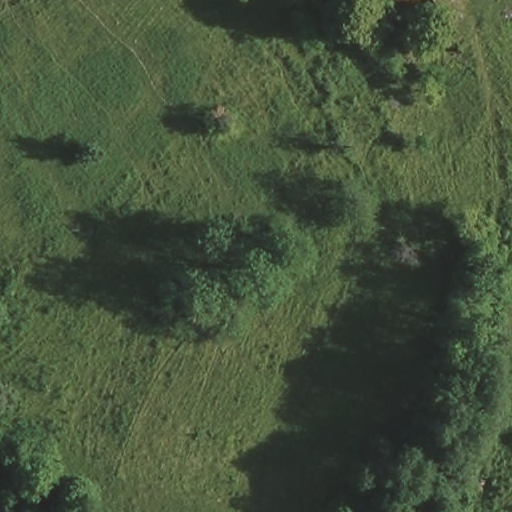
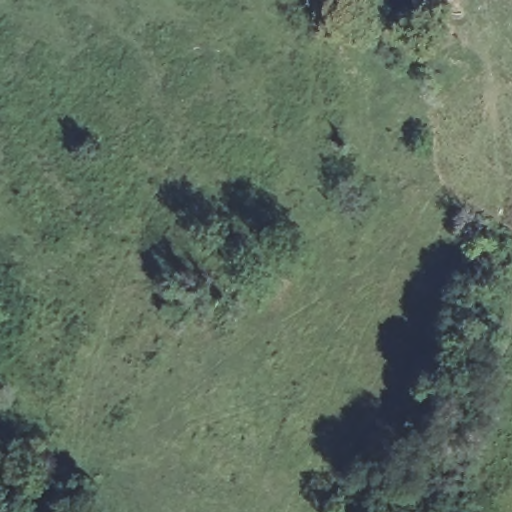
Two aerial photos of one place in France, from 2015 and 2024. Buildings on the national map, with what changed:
unchanged [(488,3),(485,0),(491,0),(488,3)]

